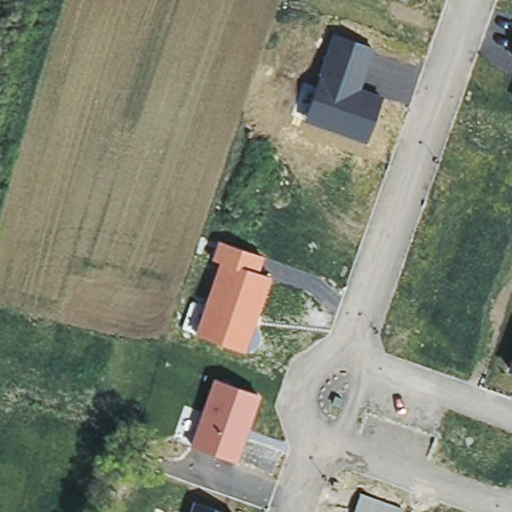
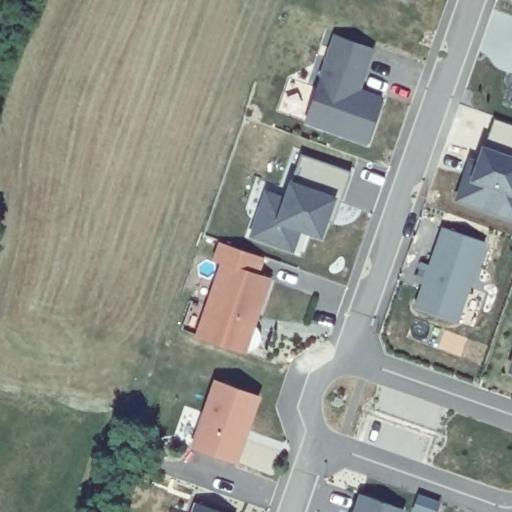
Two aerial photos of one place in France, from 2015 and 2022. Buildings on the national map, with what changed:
unchanged [(365,146),(304,123),(331,38),(375,51),(361,91),(382,99),(365,146)]
new [(326,221),(320,236),(299,229),(292,250),(250,235),(259,212),(265,193),(284,200),(300,153),(351,171),(340,203),(332,224),(326,221)]
new [(415,281),(421,263),(429,265),(442,228),(485,243),(457,322),(415,307),(421,289),(423,284),(415,281)]
unchanged [(223,264),(217,260),(220,243),(263,257),(258,270),(270,276),(255,319),(269,335),(254,350),(197,328),(223,264)]
unchanged [(215,380),(261,395),(239,458),(194,445),(215,380)]
unchanged [(403,512),(354,512),(360,493),(405,509),(403,512)]
unchanged [(196,501),(225,512),(192,512),(196,501)]

